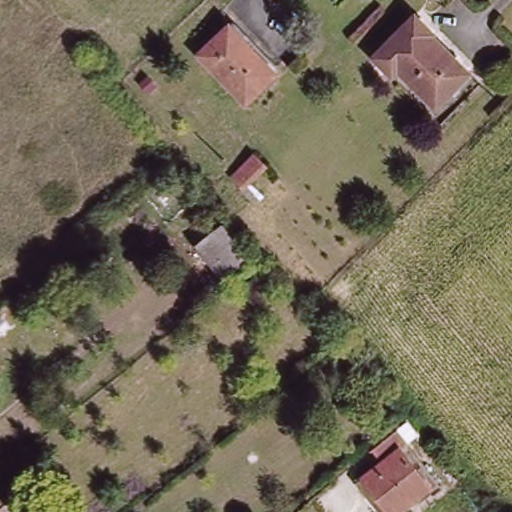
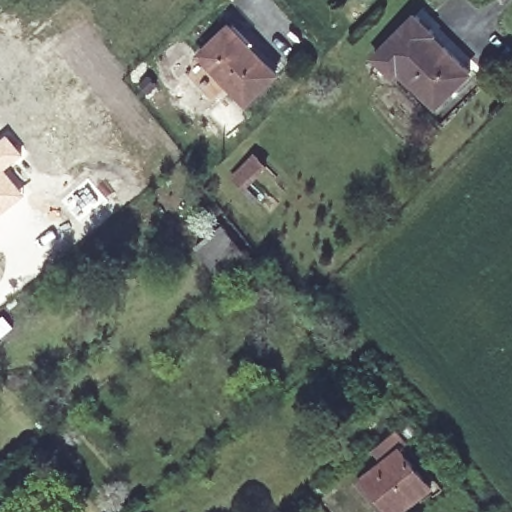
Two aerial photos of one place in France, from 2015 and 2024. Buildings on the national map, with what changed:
unchanged [(400,70),(395,74),(377,56),(417,17),(475,77),(440,111),(400,70)]
unchanged [(239,31),(281,77),(251,105),(209,58),(239,31)]
new [(25,154),(6,169),(25,194),(0,215),(0,138),(7,132),(25,154)]
unchanged [(242,171),(255,182),(234,202),(222,190),(242,171)]
unchanged [(221,232),(249,265),(226,283),(199,250),(221,232)]
unchanged [(270,294),(257,305),(240,283),(252,272),(270,294)]
unchanged [(416,512),(385,512),(374,498),(368,492),(385,477),(376,465),(401,443),(412,456),(406,461),(410,466),(434,497),(416,512)]

